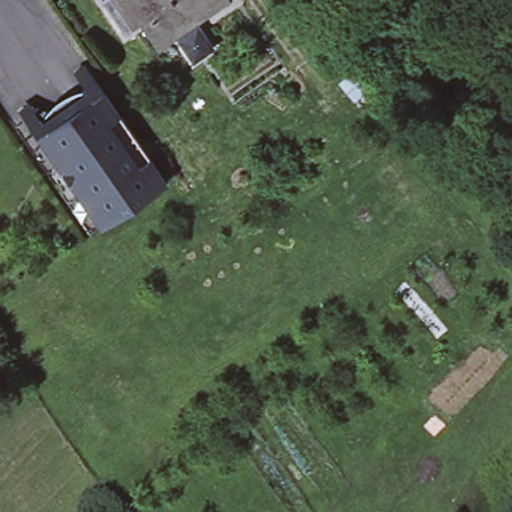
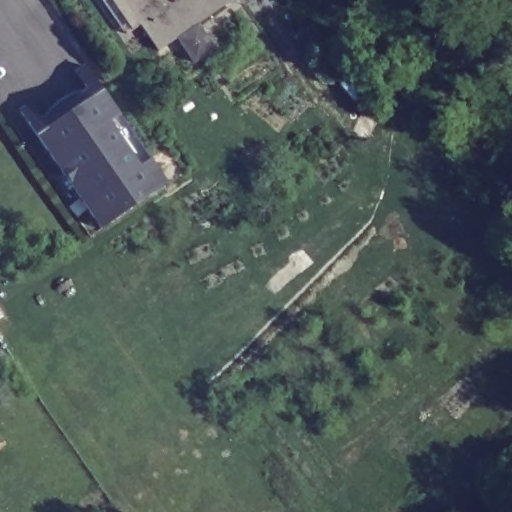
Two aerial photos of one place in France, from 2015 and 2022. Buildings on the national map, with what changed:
unchanged [(144,24),(130,33),(108,0),(236,0),(202,23),(219,48),(198,61),(181,37),(162,51),(144,24)]
unchanged [(365,63),(378,80),(354,100),(340,83),(365,63)]
unchanged [(35,109),(47,126),(92,96),(80,78),(90,71),(106,94),(160,171),(171,188),(105,233),(40,139),(25,116),(35,109)]
unchanged [(217,131),(228,148),(217,156),(171,188),(160,171),(217,131)]
unchanged [(217,156),(231,176),(186,208),(171,188),(217,156)]

